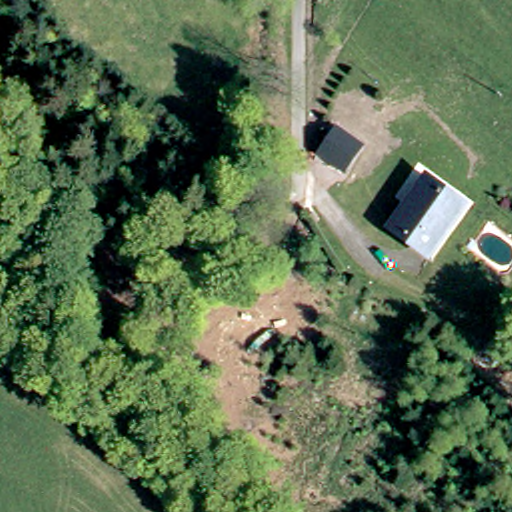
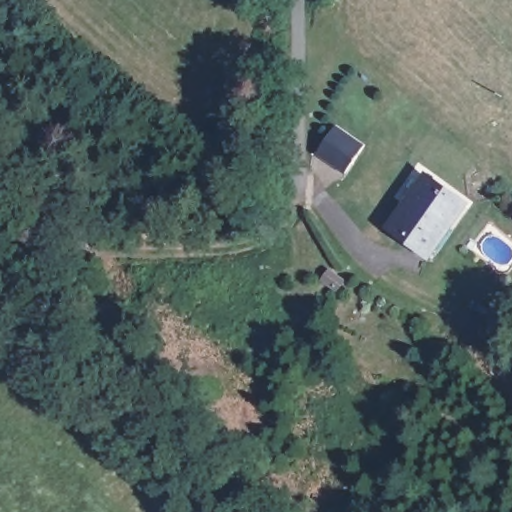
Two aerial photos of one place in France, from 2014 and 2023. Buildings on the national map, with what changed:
unchanged [(351,149),(341,165),(320,153),(330,137),(351,149)]
unchanged [(389,226),(425,175),(483,215),(484,215),(447,268),(389,226)]

